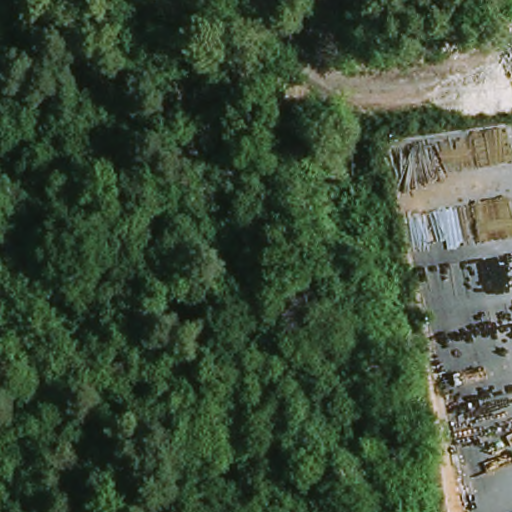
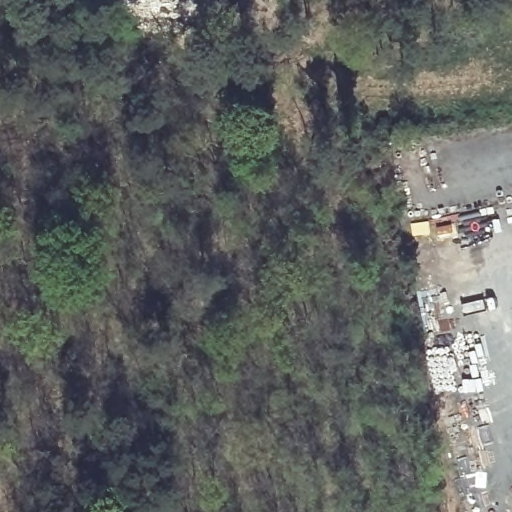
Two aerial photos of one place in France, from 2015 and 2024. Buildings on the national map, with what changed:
[]

